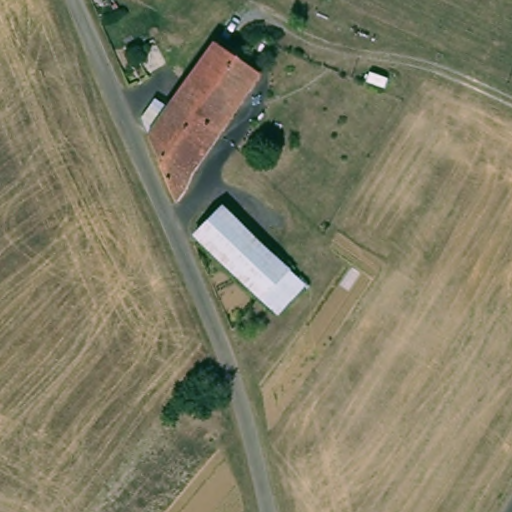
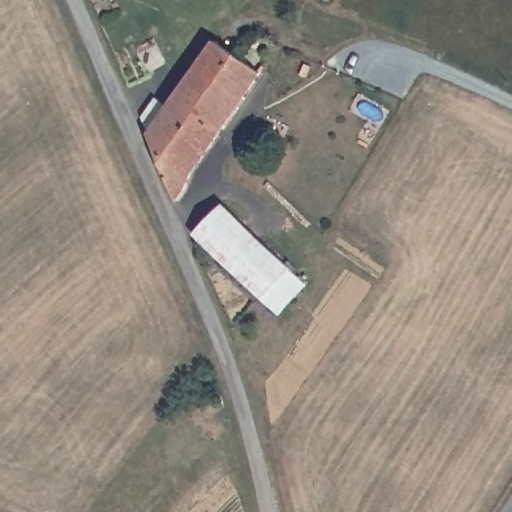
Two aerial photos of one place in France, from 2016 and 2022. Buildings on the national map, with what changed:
unchanged [(215,37),(218,39),(260,69),(223,122),(175,89),(215,37)]
unchanged [(175,89),(223,122),(193,164),(176,193),(146,125),(175,89)]
unchanged [(222,207),(243,225),(216,253),(197,234),(222,207)]
unchanged [(277,308),(263,295),(216,253),(243,225),(289,267),(303,279),(277,308)]

